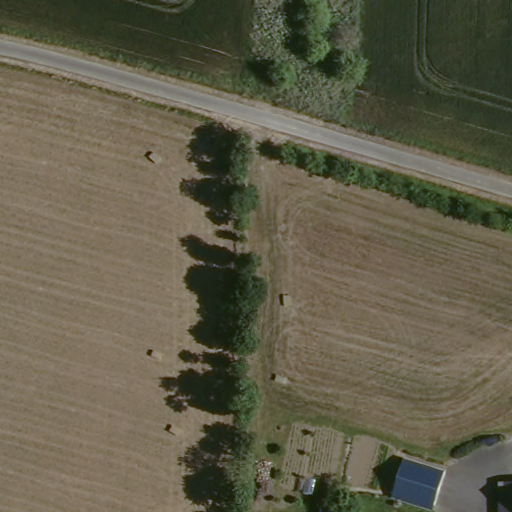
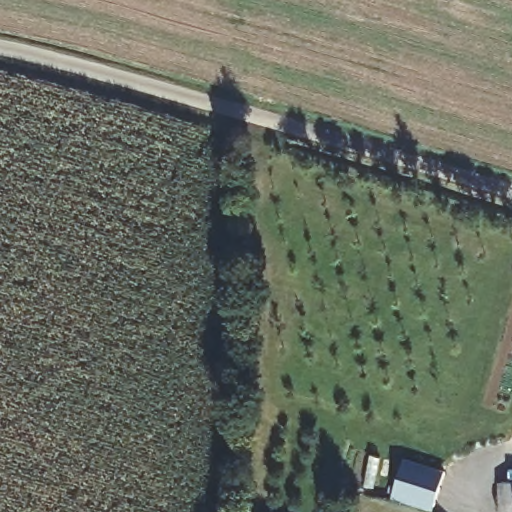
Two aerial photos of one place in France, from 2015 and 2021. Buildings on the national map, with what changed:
unchanged [(404,460),(446,471),(434,507),(394,496),(404,460)]
unchanged [(512,483),(512,512),(500,512),(500,483),(512,483)]

